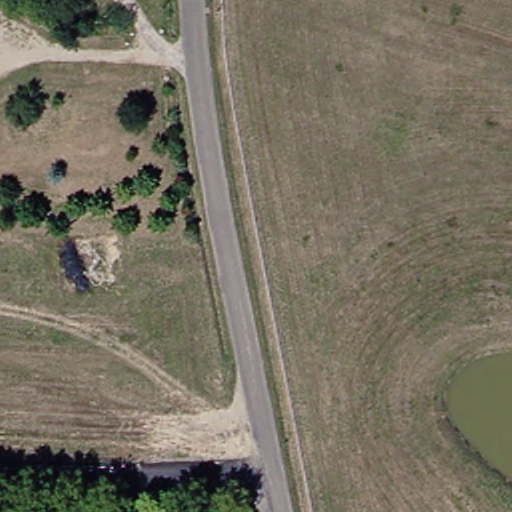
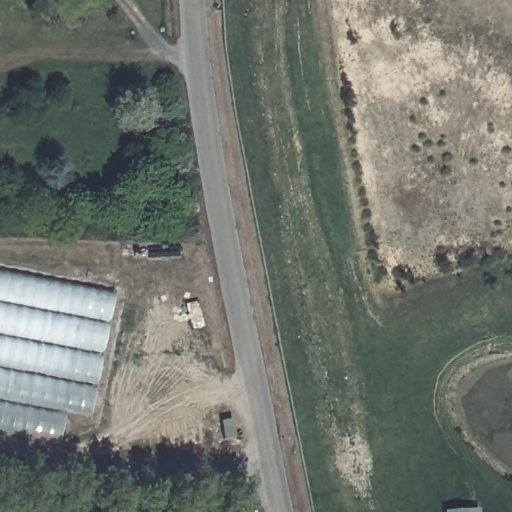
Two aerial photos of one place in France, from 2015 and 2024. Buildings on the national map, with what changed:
new [(116,295),(90,418),(67,413),(61,445),(0,434),(0,273),(116,295)]

